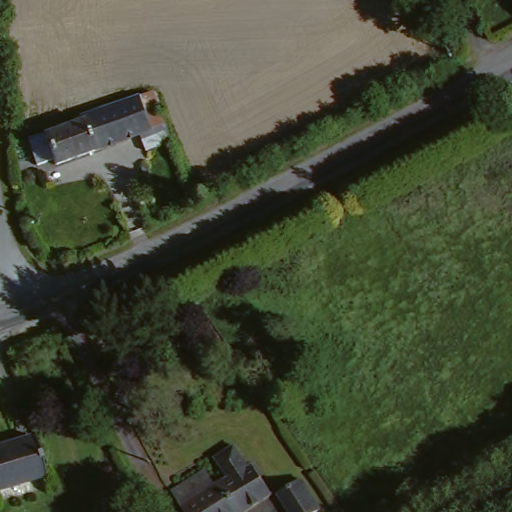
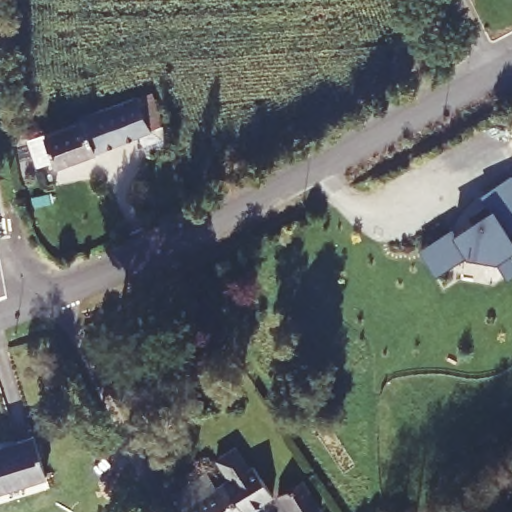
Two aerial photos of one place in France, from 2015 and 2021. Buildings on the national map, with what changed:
unchanged [(172,115),(49,169),(35,137),(72,119),(68,114),(92,104),(97,109),(157,84),(172,115)]
new [(418,250),(452,227),(456,230),(490,210),(481,195),(512,175),(512,230),(508,232),(512,239),(512,274),(506,278),(495,261),(464,256),(435,275),(418,250)]
unchanged [(41,439),(50,476),(0,490),(0,447),(37,437),(41,439)]
unchanged [(239,450),(252,472),(258,469),(276,501),(257,512),(188,512),(178,494),(212,475),(220,490),(232,483),(220,462),(239,450)]
unchanged [(321,506),(312,512),(292,512),(282,495),(303,481),(321,506)]

